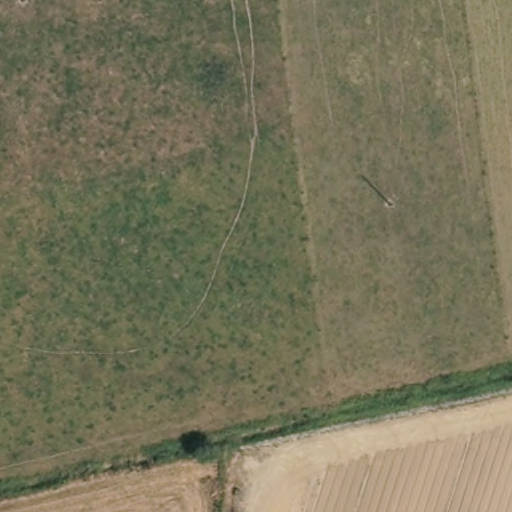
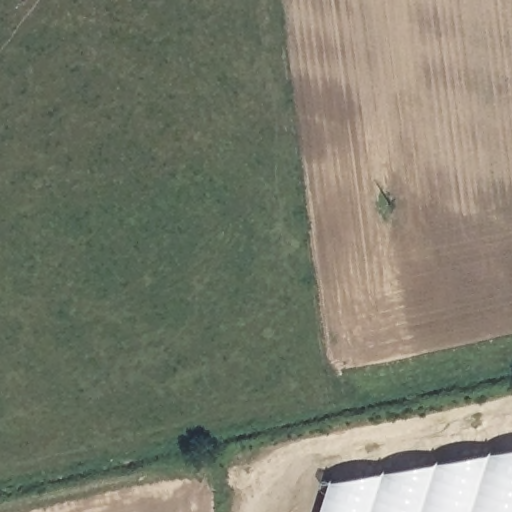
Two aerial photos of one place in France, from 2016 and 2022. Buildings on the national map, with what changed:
new [(512,449),(512,512),(322,512),(332,480),(512,449)]

